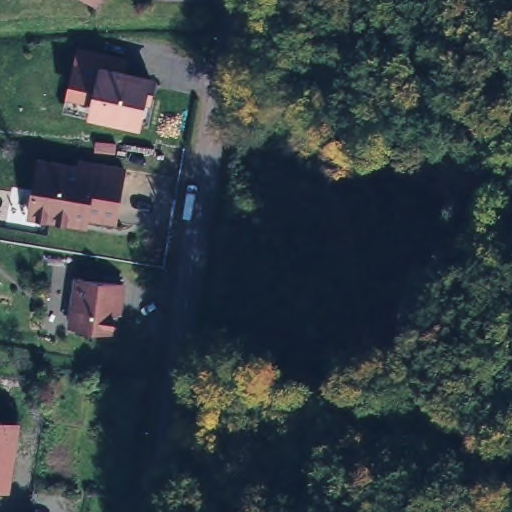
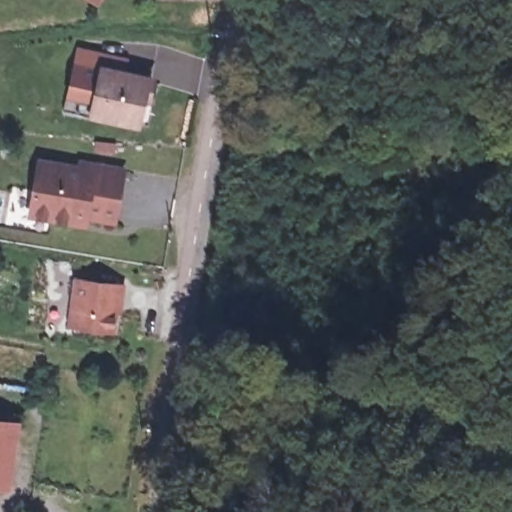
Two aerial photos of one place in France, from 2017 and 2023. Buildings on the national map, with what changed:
unchanged [(93,0),(100,0),(98,4),(93,0)]
unchanged [(146,89),(143,105),(138,104),(131,131),(89,122),(99,79),(146,89)]
unchanged [(70,224),(29,216),(38,161),(76,168),(77,160),(94,164),(123,169),(113,220),(86,216),(84,226),(70,224)]
unchanged [(111,323),(108,343),(68,337),(76,289),(120,297),(118,314),(117,323),(111,323)]
unchanged [(13,482),(0,480),(0,421),(21,425),(13,482)]

